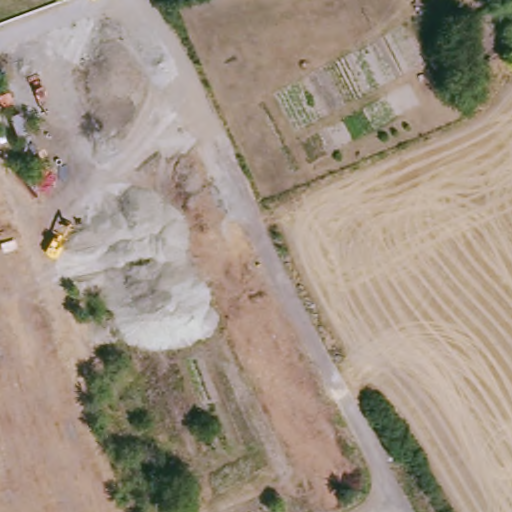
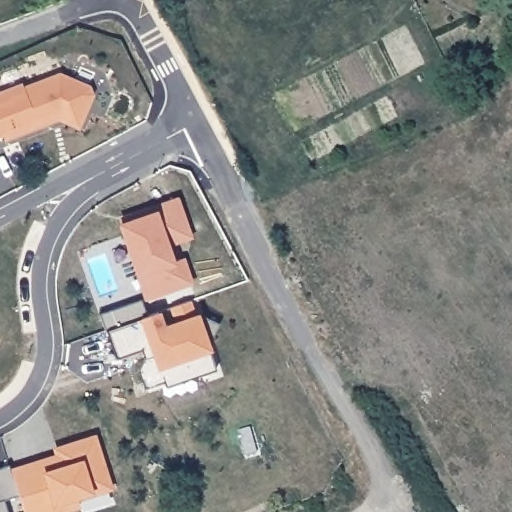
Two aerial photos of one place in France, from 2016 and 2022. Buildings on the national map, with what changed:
new [(22,83),(24,86),(60,72),(93,82),(95,91),(84,126),(62,119),(55,122),(57,127),(7,146),(5,141),(0,143),(0,92),(22,83)]
new [(138,274),(121,224),(154,213),(152,207),(176,199),(189,236),(166,244),(172,261),(181,257),(190,282),(157,294),(147,298),(138,274)]
new [(145,357),(142,349),(117,358),(106,329),(198,297),(205,316),(219,323),(208,346),(212,344),(224,375),(169,394),(166,386),(147,393),(135,361),(144,358),(145,357)]
new [(141,298),(147,315),(104,330),(99,313),(141,298)]
new [(77,495),(80,504),(55,512),(25,512),(11,471),(43,460),(44,463),(60,458),(57,449),(94,437),(110,484),(77,495)]
new [(9,464),(19,495),(0,501),(0,467),(9,464)]
new [(3,512),(0,512),(0,503),(3,512)]
new [(8,512),(3,512),(8,511),(8,512)]

